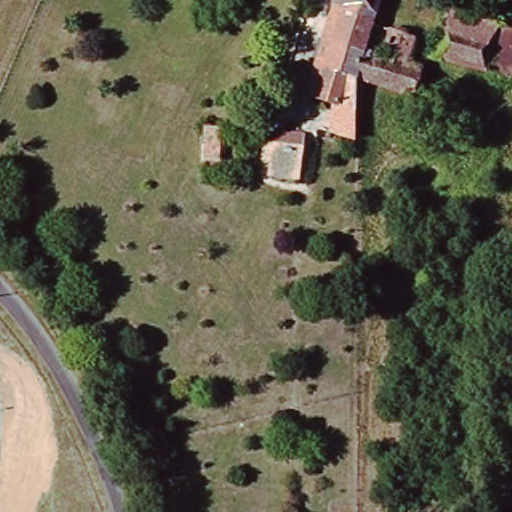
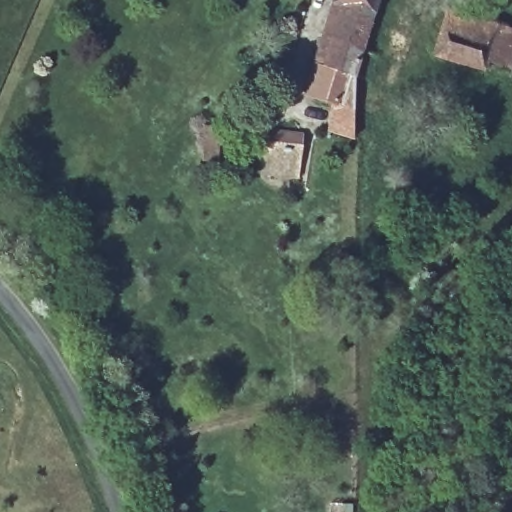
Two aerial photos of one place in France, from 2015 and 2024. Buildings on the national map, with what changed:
unchanged [(344,1),(342,0),(378,0),(373,19),(357,72),(346,69),(338,99),(317,92),(344,1)]
unchanged [(512,24),(512,70),(512,72),(435,48),(449,4),(512,24)]
unchanged [(414,31),(406,58),(419,62),(412,89),(357,72),(373,19),(414,31)]
unchanged [(353,123),(321,120),(323,102),(354,106),(353,123)]
unchanged [(300,133),(298,148),(270,145),(272,128),(300,133)]

